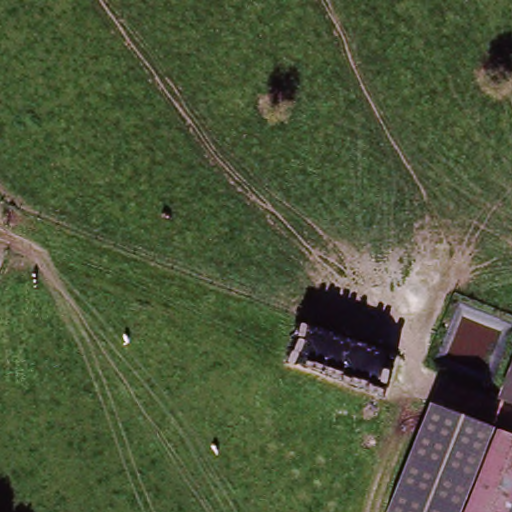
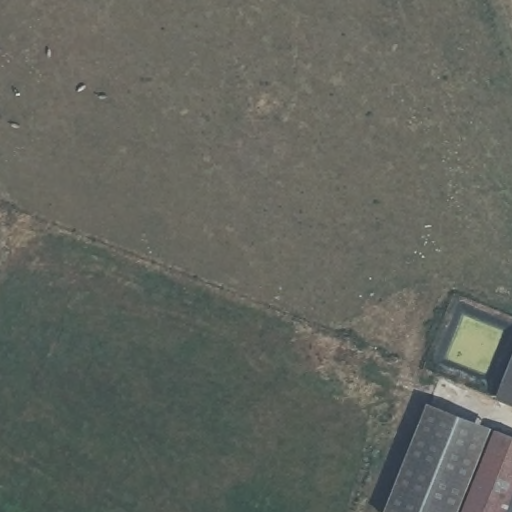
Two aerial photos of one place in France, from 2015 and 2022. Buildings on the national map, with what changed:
unchanged [(427,408),(489,432),(457,512),(386,512),(427,408)]
unchanged [(494,435),(512,442),(512,512),(464,512),(494,435)]

